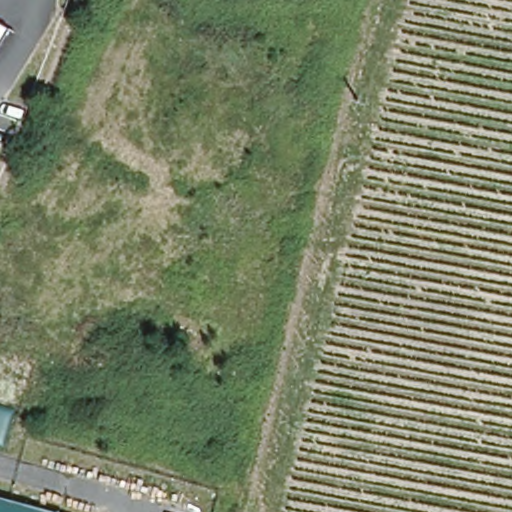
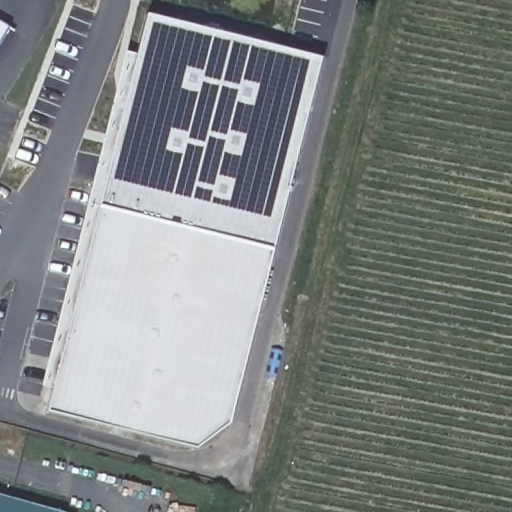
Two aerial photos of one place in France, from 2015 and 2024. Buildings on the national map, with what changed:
new [(146,13),(319,58),(272,250),(98,207),(146,13)]
new [(227,424),(195,449),(46,413),(98,207),(272,250),(227,424)]
unchanged [(0,512),(0,495),(59,512),(0,512)]

